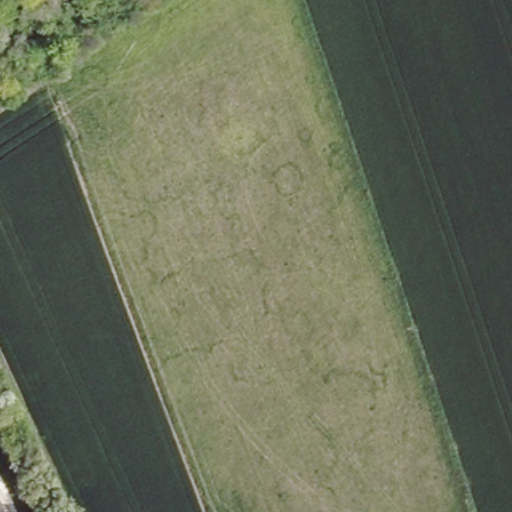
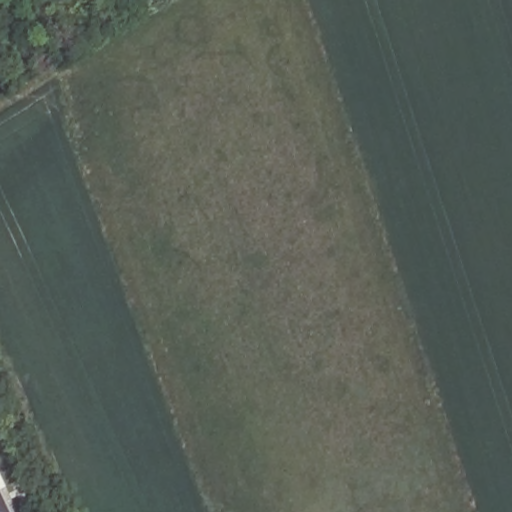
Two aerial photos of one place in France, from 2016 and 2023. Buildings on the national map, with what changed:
unchanged [(10,512),(0,512),(0,491),(10,512)]

